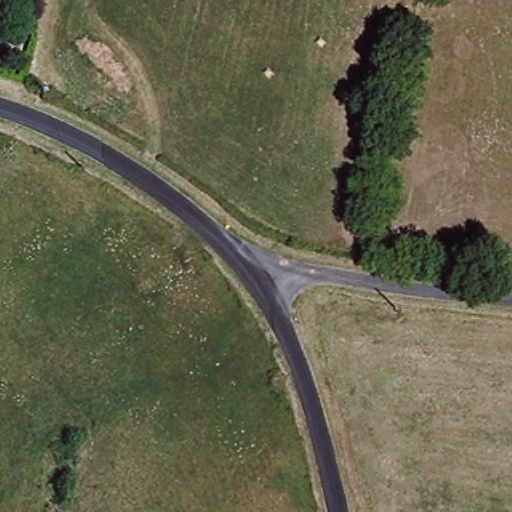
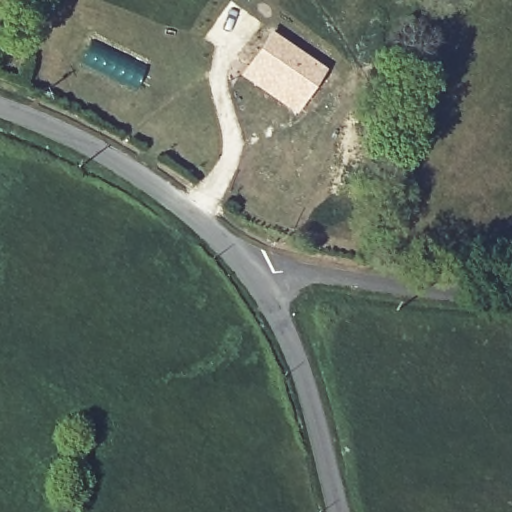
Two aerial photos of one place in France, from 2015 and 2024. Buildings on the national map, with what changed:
new [(270,30),(325,67),(295,114),(238,75),(270,30)]

